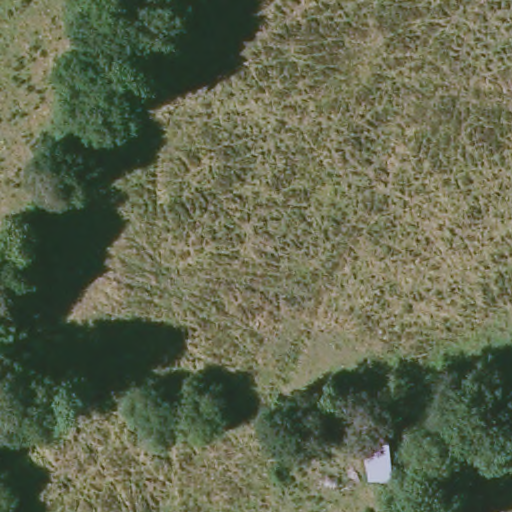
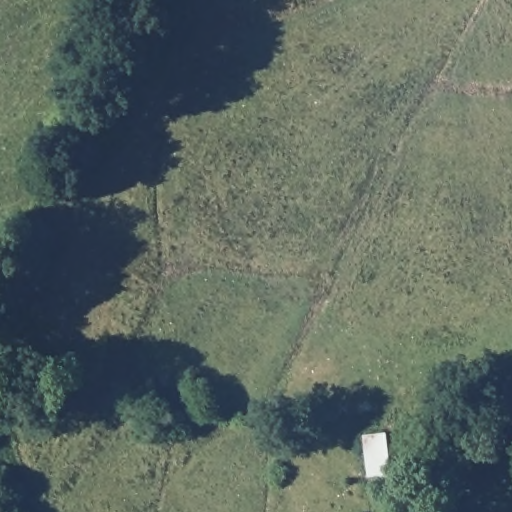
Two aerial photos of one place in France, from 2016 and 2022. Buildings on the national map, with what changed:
unchanged [(395,433),(397,477),(372,482),(368,438),(395,433)]

